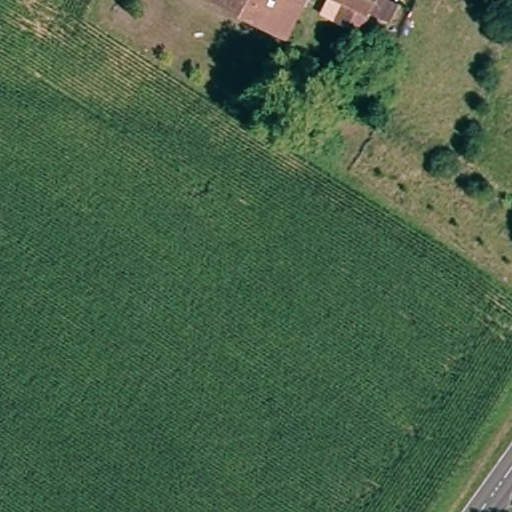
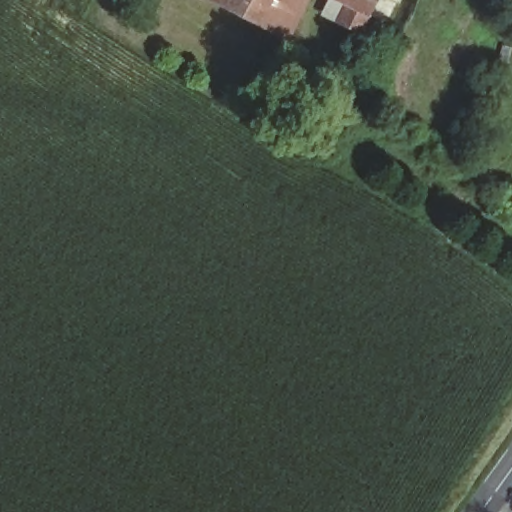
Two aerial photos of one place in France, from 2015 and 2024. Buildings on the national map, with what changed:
unchanged [(288,39),(212,0),(308,0),(288,39)]
unchanged [(360,32),(340,22),(347,5),(338,0),(376,0),(360,32)]

